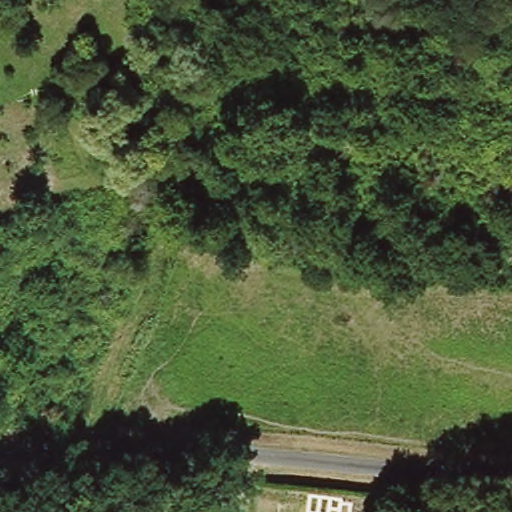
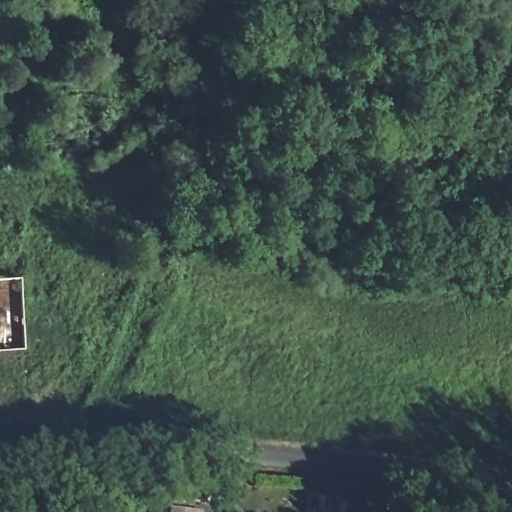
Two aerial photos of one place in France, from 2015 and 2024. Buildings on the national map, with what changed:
new [(25,348),(0,349),(0,278),(20,277),(25,348)]

